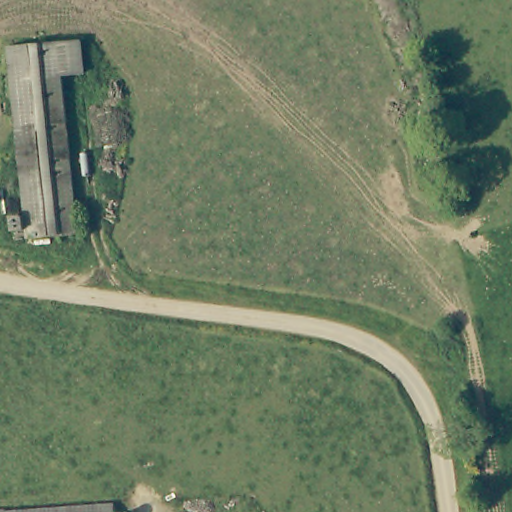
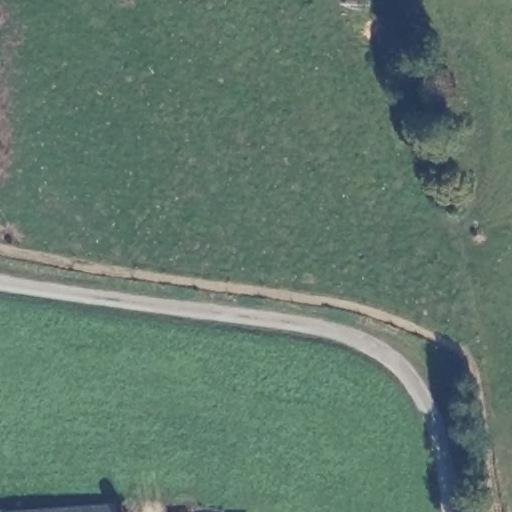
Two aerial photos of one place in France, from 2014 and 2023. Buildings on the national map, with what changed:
demolished [(9,43),(81,36),(84,69),(63,71),(78,229),(28,234),(9,43)]
unchanged [(17,512),(115,505),(116,512),(17,512)]

